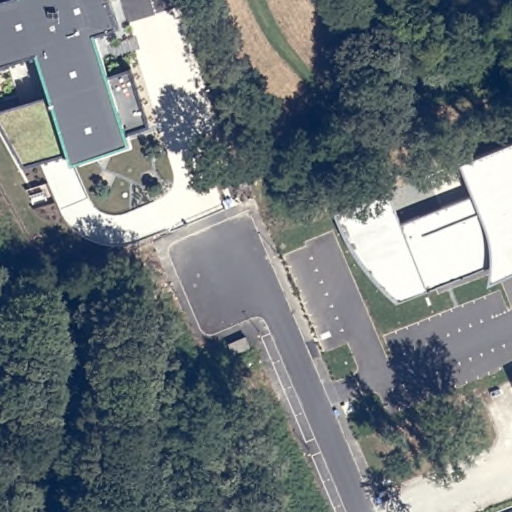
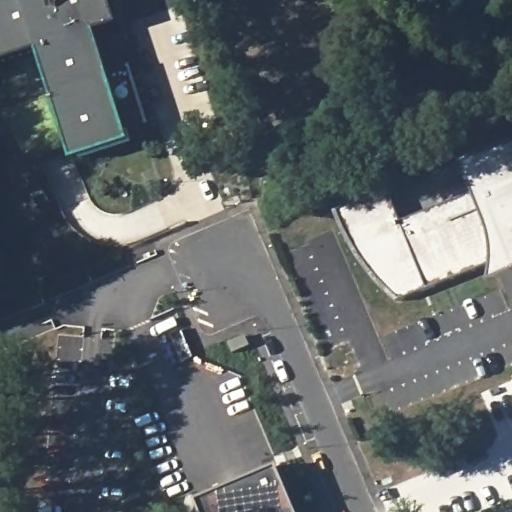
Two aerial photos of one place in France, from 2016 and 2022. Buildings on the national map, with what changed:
unchanged [(92,29),(101,61),(117,57),(121,70),(129,67),(146,123),(124,130),(126,140),(69,158),(66,147),(21,162),(0,123),(0,108),(50,92),(37,48),(0,59),(0,0),(108,0),(115,23),(92,29)]
unchanged [(365,264),(350,243),(341,227),(336,210),(387,191),(400,221),(471,191),(458,159),(512,140),(512,270),(488,279),(490,268),(491,261),(425,287),(397,297),(378,280),(365,264)]
new [(276,467),(293,512),(198,512),(193,500),(276,467)]

